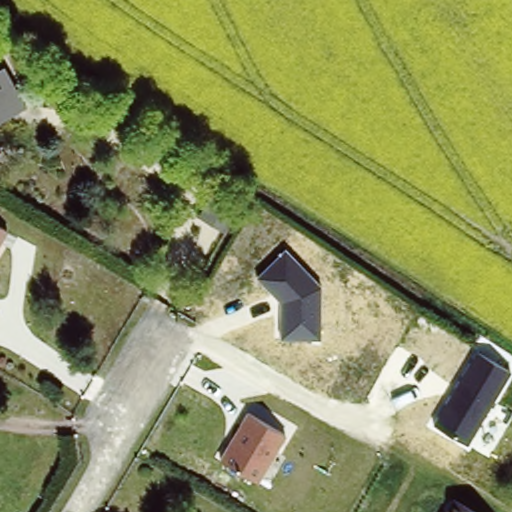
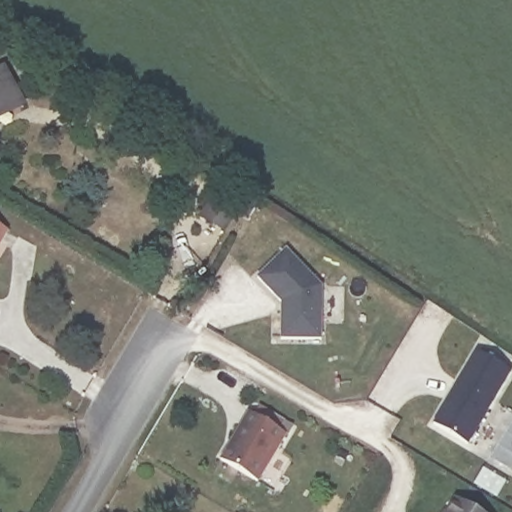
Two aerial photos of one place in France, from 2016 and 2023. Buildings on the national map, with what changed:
unchanged [(17,105),(0,114),(0,75),(17,105)]
unchanged [(222,195),(234,202),(219,225),(207,218),(222,195)]
unchanged [(2,230),(0,233),(0,228),(2,230)]
unchanged [(281,302),(257,277),(285,249),(322,286),(322,339),(280,339),(281,302)]
unchanged [(434,424),(478,352),(511,372),(467,445),(434,424)]
unchanged [(219,459),(247,412),(287,434),(256,483),(219,459)]
unchanged [(449,512),(446,512),(447,511),(449,512)]

